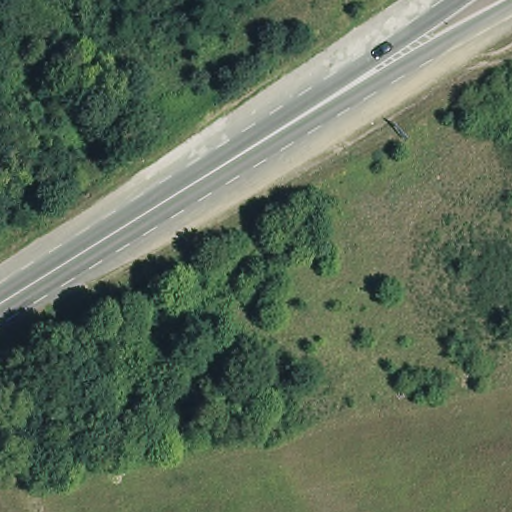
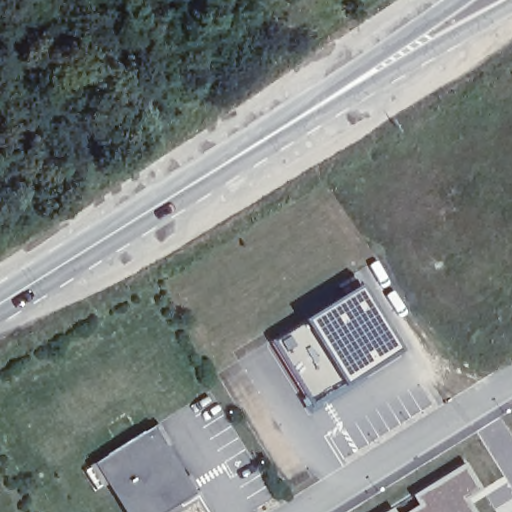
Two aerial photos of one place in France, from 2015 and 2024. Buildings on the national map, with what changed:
new [(364,288),(401,353),(309,410),(270,340),(364,288)]
new [(154,425),(196,492),(163,512),(125,512),(94,462),(154,425)]
new [(471,462),(485,489),(470,497),(477,512),(384,512),(471,462)]

